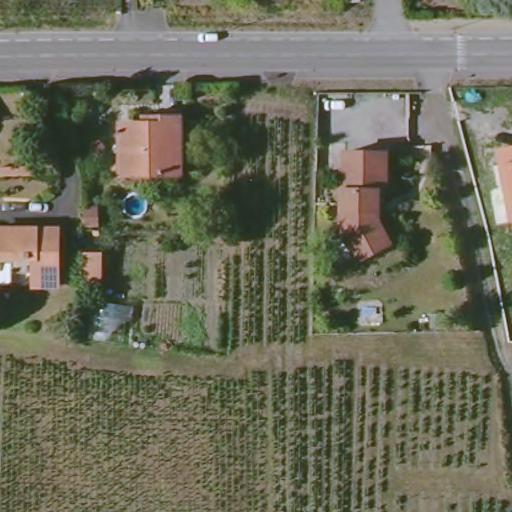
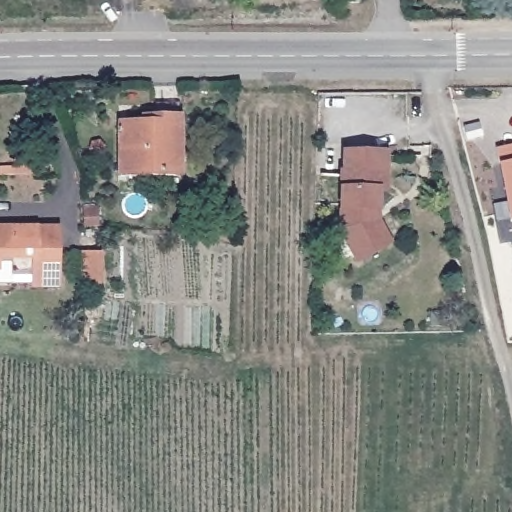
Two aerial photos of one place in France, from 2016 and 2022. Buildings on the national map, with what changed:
unchanged [(118,175),(118,124),(143,125),(143,115),(179,116),(178,176),(118,175)]
unchanged [(499,166),(496,149),(512,146),(512,221),(509,222),(499,166)]
unchanged [(335,229),(336,170),(339,170),(339,150),(381,151),(380,189),(373,189),(372,209),(367,209),(366,219),(371,219),(384,242),(351,259),(335,229)]
unchanged [(1,174),(34,172),(34,181),(2,183),(1,174)]
unchanged [(11,226),(12,231),(33,231),(33,226),(55,226),(55,282),(33,282),(33,269),(10,269),(10,254),(6,254),(0,254),(0,226),(11,226)]
unchanged [(84,251),(97,251),(96,279),(83,279),(81,279),(81,251),(84,251)]

